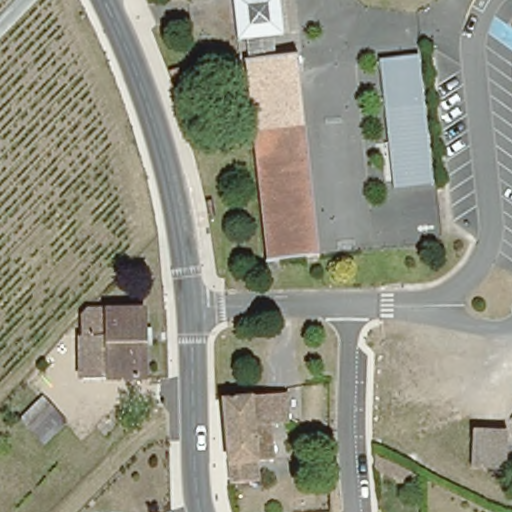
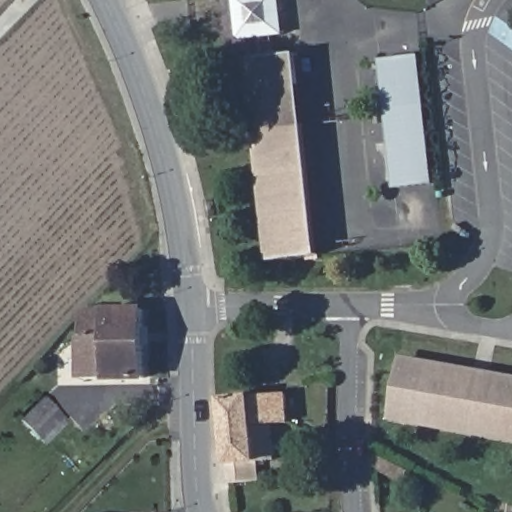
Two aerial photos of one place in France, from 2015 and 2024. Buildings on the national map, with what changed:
unchanged [(282,37),(270,38),(272,60),(247,62),(245,40),(237,41),(234,0),(280,0),(282,37)]
demolished [(417,13),(408,0),(438,0),(417,13)]
unchanged [(246,62),(247,62),(272,60),(292,58),(295,88),(249,92),(246,62)]
unchanged [(422,59),(433,189),(394,192),(383,63),(422,59)]
unchanged [(295,88),(298,128),(252,132),(249,92),(295,88)]
unchanged [(298,128),(309,258),(263,261),(252,132),(298,128)]
demolished [(413,285),(368,285),(365,252),(410,250),(413,285)]
unchanged [(71,361),(74,353),(74,330),(71,324),(71,318),(85,318),(85,307),(145,306),(146,374),(86,375),(71,376),(71,361)]
new [(389,420),(401,355),(512,375),(512,442),(389,420)]
unchanged [(35,395),(60,419),(39,443),(12,418),(35,395)]
unchanged [(273,425),(276,466),(260,466),(261,486),(232,488),(221,398),(285,396),(286,424),(273,425)]
demolished [(494,475),(470,473),(473,436),(497,437),(494,475)]

